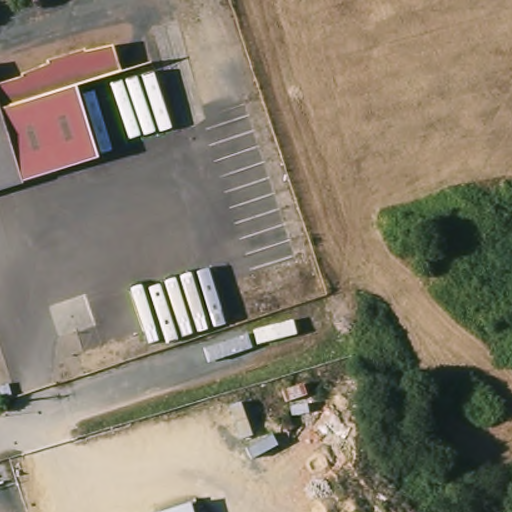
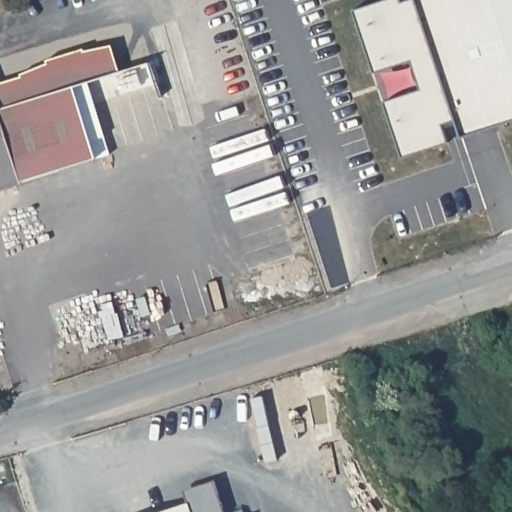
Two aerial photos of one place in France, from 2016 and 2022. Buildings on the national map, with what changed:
new [(401,0),(401,2),(407,0),(512,0),(512,120),(463,137),(458,117),(441,122),(447,140),(403,154),(385,101),(421,89),(411,59),(375,70),(356,10),(384,0),(401,0)]
unchanged [(0,189),(0,84),(20,77),(19,75),(45,64),(45,61),(81,50),(82,53),(110,47),(118,73),(73,87),(95,160),(20,183),(0,189)]
unchanged [(188,499),(193,512),(150,512),(188,499)]

